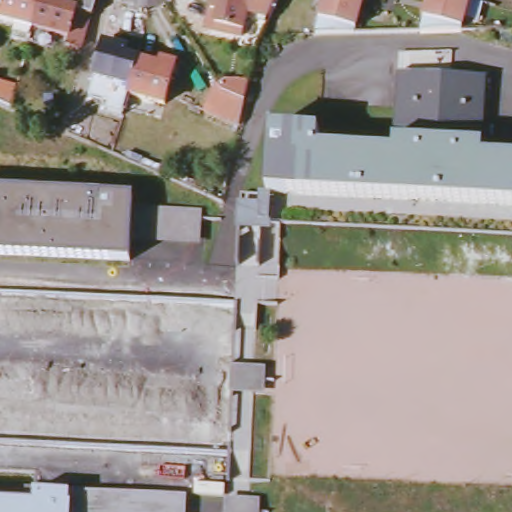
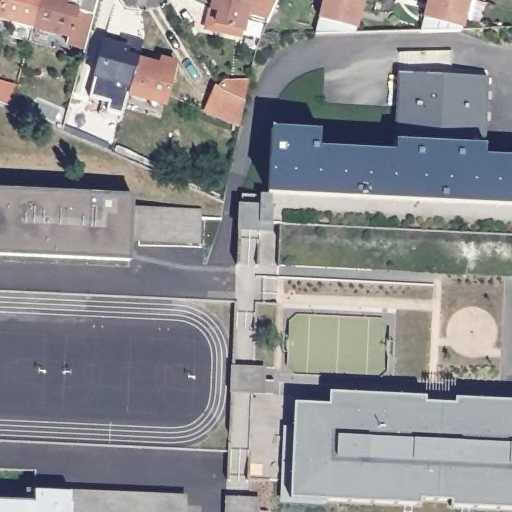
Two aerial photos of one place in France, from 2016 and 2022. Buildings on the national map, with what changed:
unchanged [(40,0),(28,44),(10,39),(14,24),(0,20),(0,3),(1,0),(40,0)]
unchanged [(93,16),(90,15),(80,48),(66,45),(68,39),(56,35),(53,50),(28,44),(40,0),(98,0),(95,8),(93,16)]
unchanged [(245,20),(241,39),(206,30),(213,0),(278,0),(267,25),(245,20)]
unchanged [(316,31),(324,0),(363,0),(355,30),(329,30),(316,31)]
unchanged [(469,0),(462,27),(425,28),(422,28),(429,0),(469,0)]
unchanged [(131,88),(94,77),(104,43),(128,50),(126,56),(138,59),(131,88)]
unchanged [(131,88),(138,59),(154,64),(156,57),(177,64),(164,106),(128,96),(131,88)]
unchanged [(241,126),(207,111),(213,86),(216,85),(223,79),(249,82),(246,101),(241,126)]
unchanged [(321,138),(321,156),(395,159),(399,79),(488,83),(484,162),(512,164),(512,212),(271,203),(272,136),(321,138)]
unchanged [(0,100),(0,82),(16,86),(11,105),(0,100)]
unchanged [(129,199),(128,213),(127,240),(125,261),(0,255),(0,192),(129,199)]
unchanged [(276,213),(275,240),(241,239),(243,211),(276,213)]
unchanged [(201,215),(201,241),(127,240),(128,213),(201,215)]
unchanged [(265,367),(264,395),(230,393),(231,365),(265,367)]
new [(452,500),(420,498),(419,505),(290,498),(295,403),(329,405),(329,392),(427,397),(427,402),(455,403),(456,398),(512,401),(512,511),(451,507),(452,500)]
unchanged [(39,507),(40,490),(190,496),(190,512),(0,512),(0,506),(39,507)]
unchanged [(260,495),(259,512),(225,512),(226,494),(260,495)]

